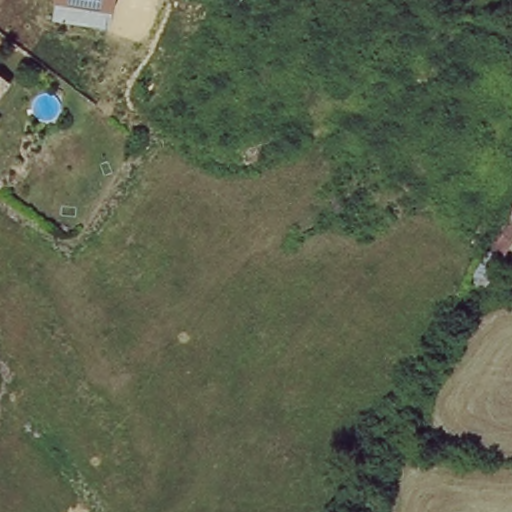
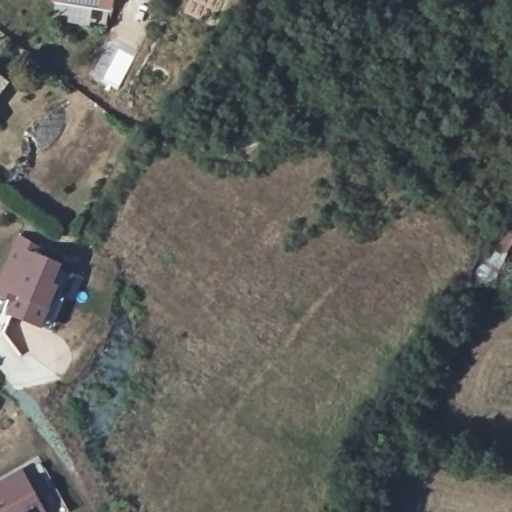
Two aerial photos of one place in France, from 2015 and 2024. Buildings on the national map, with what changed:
unchanged [(117,15),(55,5),(56,0),(120,0),(117,15)]
unchanged [(0,101),(0,76),(11,83),(0,101)]
unchanged [(0,120),(2,121),(0,124),(0,120)]
new [(38,257),(64,268),(57,287),(62,288),(42,330),(5,317),(10,301),(0,297),(0,282),(20,237),(42,251),(38,257)]
new [(46,512),(0,512),(0,484),(22,471),(46,512)]

